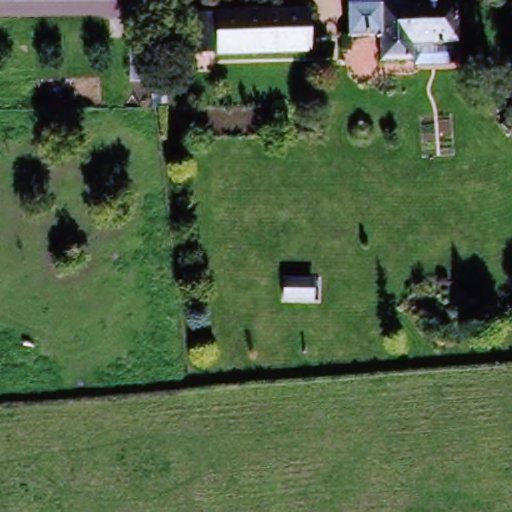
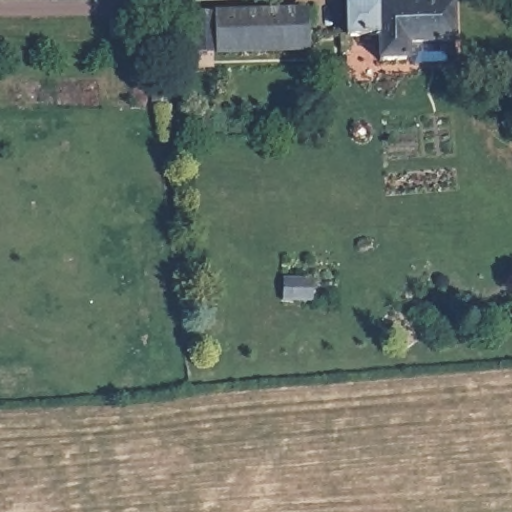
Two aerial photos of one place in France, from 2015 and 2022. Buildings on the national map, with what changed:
unchanged [(345,39),(346,4),(455,5),(455,40),(408,39),(408,62),(378,62),(379,39),(345,39)]
unchanged [(191,47),(191,17),(308,17),(308,47),(191,47)]
unchanged [(315,307),(285,305),(287,279),(317,281),(315,307)]

